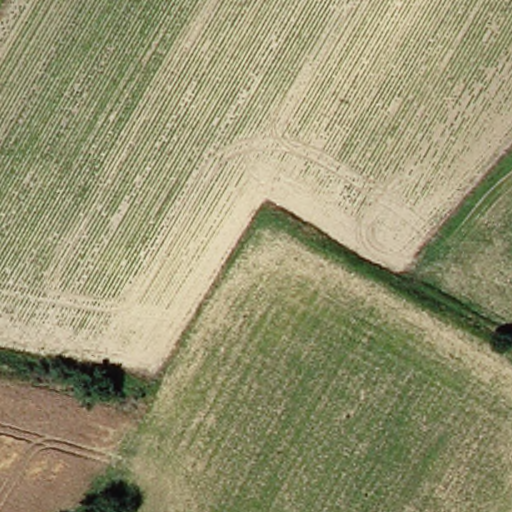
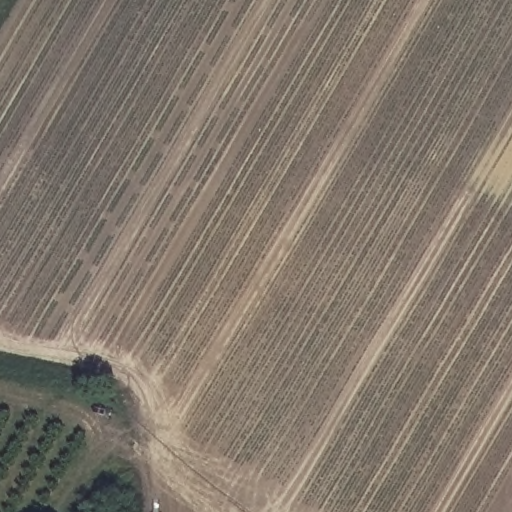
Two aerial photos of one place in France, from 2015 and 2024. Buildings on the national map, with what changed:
[]

